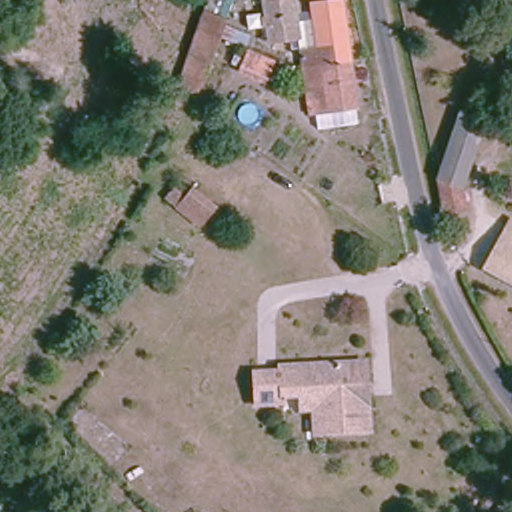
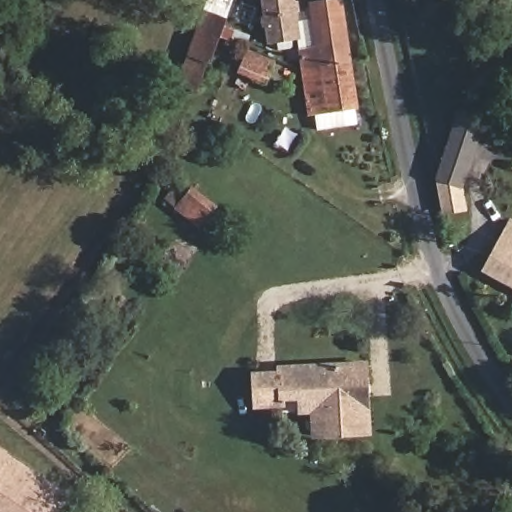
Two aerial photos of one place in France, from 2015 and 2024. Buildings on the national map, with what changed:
unchanged [(205,0),(238,0),(224,38),(195,27),(205,0)]
unchanged [(320,21),(318,7),(349,5),(359,68),(307,73),(303,42),(276,45),(269,0),(298,0),(302,24),(320,21)]
unchanged [(224,38),(204,89),(176,77),(195,27),(224,38)]
unchanged [(359,68),(366,111),(362,112),(321,117),(314,118),(307,73),(359,68)]
unchanged [(450,119),(478,128),(458,192),(460,213),(433,219),(425,188),(450,119)]
unchanged [(165,199),(179,180),(191,189),(196,184),(219,205),(201,230),(165,199)]
unchanged [(507,221),(512,224),(512,292),(495,282),(478,273),(501,231),(507,221)]
unchanged [(276,369),(275,364),(365,360),(370,431),(311,433),(308,413),(296,414),(295,406),(254,407),(249,371),(276,369)]
new [(68,493),(55,512),(0,512),(0,450),(68,493)]

